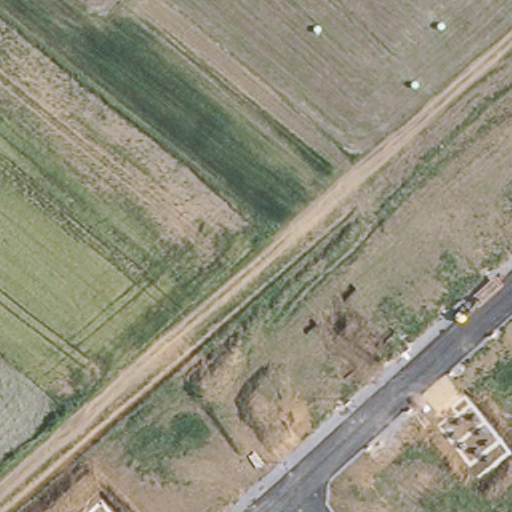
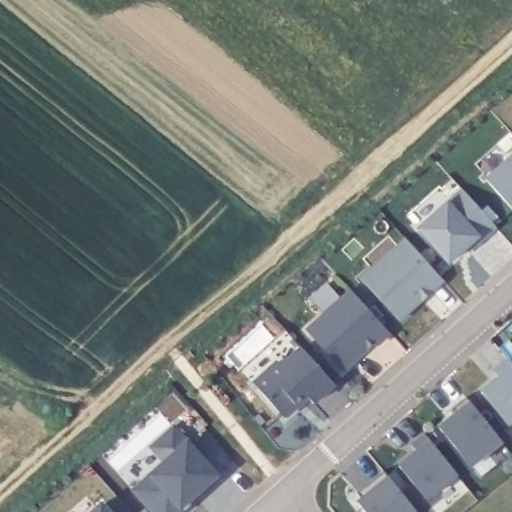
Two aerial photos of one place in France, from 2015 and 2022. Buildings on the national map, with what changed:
new [(485,178),(510,155),(512,157),(512,209),(485,178)]
unchanged [(462,191),(495,229),(476,247),(472,243),(449,264),(419,231),(462,191)]
new [(444,283),(400,321),(359,278),(404,238),(444,283)]
new [(392,334),(380,346),(376,342),(344,372),(306,329),(324,312),(309,297),(326,283),(339,297),(349,288),(392,334)]
new [(334,386),(314,404),(310,399),(289,418),(283,418),(252,381),(276,361),(279,363),(299,346),(334,386)]
new [(482,395),(500,380),(494,373),(508,363),(512,369),(512,424),(509,428),(482,395)]
new [(504,443),(472,468),(437,424),(469,399),(504,443)]
new [(186,439),(219,476),(181,511),(181,512),(152,512),(131,489),(146,474),(163,459),(151,448),(176,427),(186,439)]
new [(458,476),(427,502),(396,464),(428,439),(458,476)]
new [(359,506),(376,492),(370,486),(384,475),(415,512),(364,512),(359,506)]
new [(112,512),(88,512),(101,500),(112,512)]

